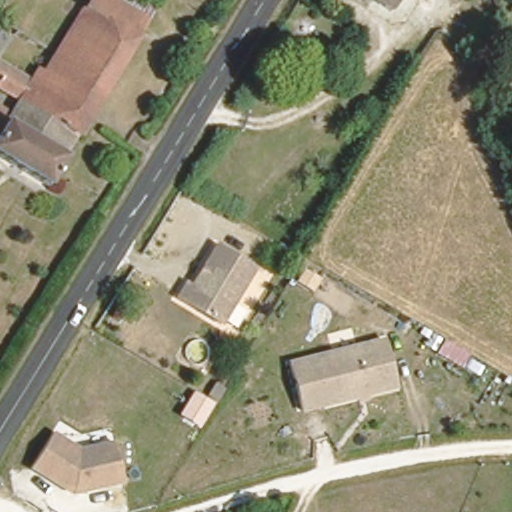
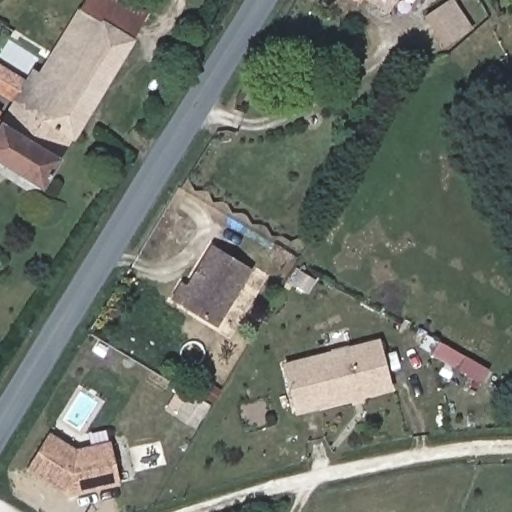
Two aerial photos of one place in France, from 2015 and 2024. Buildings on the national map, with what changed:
unchanged [(39,67),(80,0),(81,0),(137,38),(96,103),(39,67)]
unchanged [(157,5),(137,38),(81,0),(150,0),(157,5)]
unchanged [(362,4),(356,0),(365,0),(362,4)]
unchanged [(368,0),(399,0),(391,12),(368,0)]
new [(473,29),(445,48),(423,16),(448,0),(453,0),(473,29)]
unchanged [(0,83),(0,28),(4,21),(15,27),(0,58),(30,80),(21,96),(0,83)]
unchanged [(65,154),(7,117),(21,96),(30,80),(39,67),(96,103),(65,154)]
unchanged [(48,181),(0,151),(0,130),(7,117),(65,154),(48,181)]
unchanged [(253,273),(219,328),(175,302),(184,287),(190,291),(214,250),(253,273)]
unchanged [(381,343),(391,392),(296,413),(285,364),(381,343)]
unchanged [(76,455),(112,446),(122,486),(70,498),(27,473),(49,438),(76,455)]

